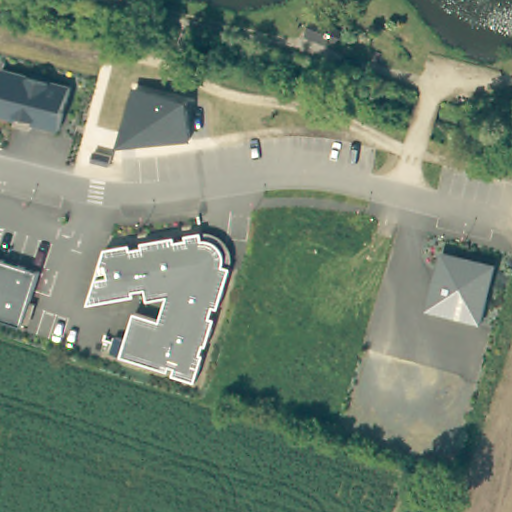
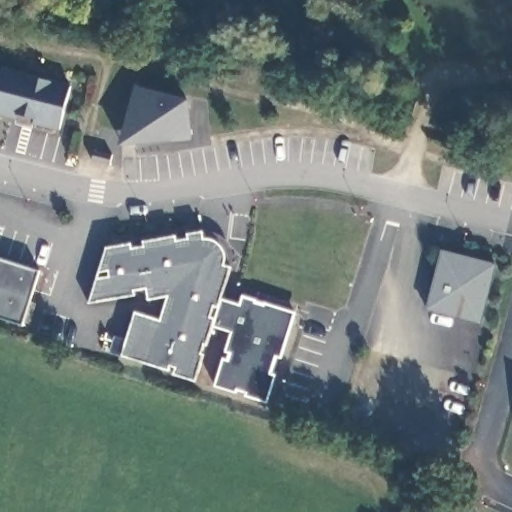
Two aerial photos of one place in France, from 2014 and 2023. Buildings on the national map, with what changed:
unchanged [(16,125),(17,121),(0,117),(0,75),(1,71),(30,79),(31,75),(50,80),(50,84),(70,89),(59,132),(33,125),(32,130),(16,125)]
unchanged [(188,99),(193,140),(120,146),(135,86),(188,99)]
unchanged [(112,157),(109,168),(92,164),(95,153),(112,157)]
unchanged [(216,308),(212,318),(217,320),(209,346),(206,346),(204,355),(206,355),(198,382),(176,376),(177,368),(172,367),(171,372),(112,355),(117,338),(128,341),(137,313),(162,321),(169,298),(151,301),(149,290),(137,291),(138,296),(91,305),(98,280),(111,278),(110,272),(100,275),(107,250),(132,245),(133,250),(145,248),(144,243),(177,237),(177,242),(189,240),(188,235),(204,233),(212,232),(216,232),(220,234),(224,235),(227,237),(230,240),(232,244),(235,247),(236,251),(236,255),(235,261),(232,268),(220,310),(216,308)]
unchanged [(484,325),(430,310),(437,283),(442,284),(449,258),(455,255),(499,265),(484,325)]
unchanged [(27,317),(24,327),(0,319),(0,259),(42,272),(32,303),(37,305),(35,310),(32,319),(27,317)]
new [(217,320),(212,318),(216,308),(220,310),(222,300),(241,304),(242,296),(257,300),(258,290),(299,302),(293,314),(280,356),(277,356),(270,375),(275,376),(266,402),(245,397),(247,392),(236,388),(235,392),(212,386),(222,358),(229,360),(231,353),(224,351),(231,332),(215,327),(217,320)]

